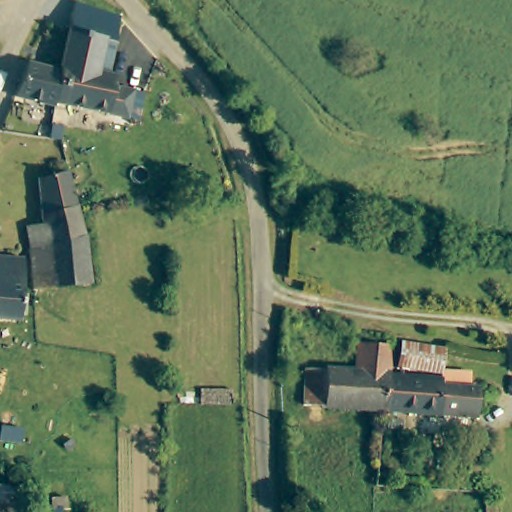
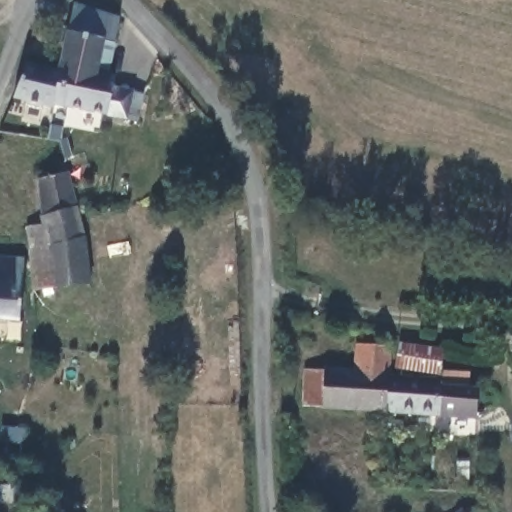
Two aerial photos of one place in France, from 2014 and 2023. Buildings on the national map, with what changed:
unchanged [(121,19),(114,45),(100,41),(68,32),(75,3),(121,19)]
unchanged [(68,32),(100,41),(114,45),(105,77),(110,86),(102,115),(54,101),(55,98),(60,71),(58,70),(68,32)]
unchanged [(27,62),(58,70),(60,71),(55,98),(54,101),(53,105),(15,95),(27,62)]
unchanged [(41,220),(41,175),(55,173),(55,163),(65,161),(77,210),(84,238),(27,245),(22,224),(41,220)]
unchanged [(84,238),(90,286),(34,290),(30,258),(27,245),(84,238)]
unchanged [(25,258),(20,321),(0,320),(0,256),(25,258)]
unchanged [(305,369),(354,372),(355,345),(392,346),(389,377),(385,412),(302,406),(305,369)]
unchanged [(400,347),(443,350),(442,375),(398,372),(400,347)]
unchanged [(389,377),(441,381),(441,387),(477,390),(475,418),(385,412),(389,377)]

